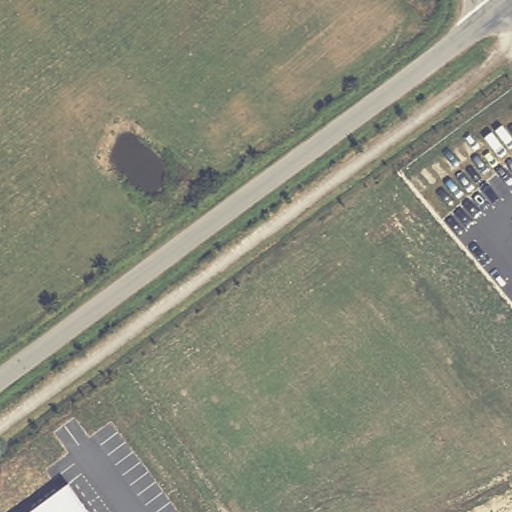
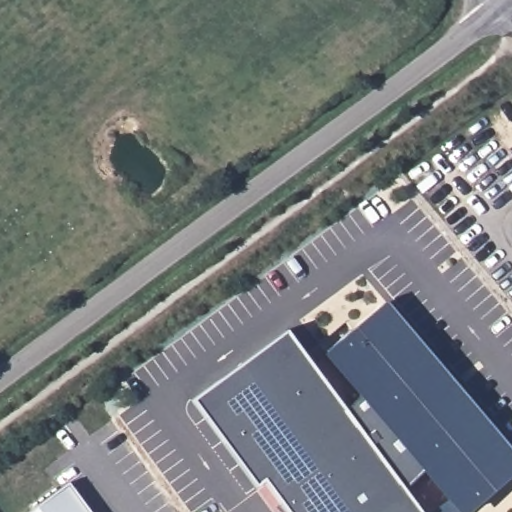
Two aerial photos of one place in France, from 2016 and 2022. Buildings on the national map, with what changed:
new [(512,474),(467,512),(430,512),(447,500),(421,471),(404,487),(420,512),(285,512),(262,480),(254,486),(190,399),(285,329),(345,410),(358,395),(323,355),(385,301),(512,451),(512,474)]
unchanged [(90,512),(31,512),(69,483),(90,512)]

